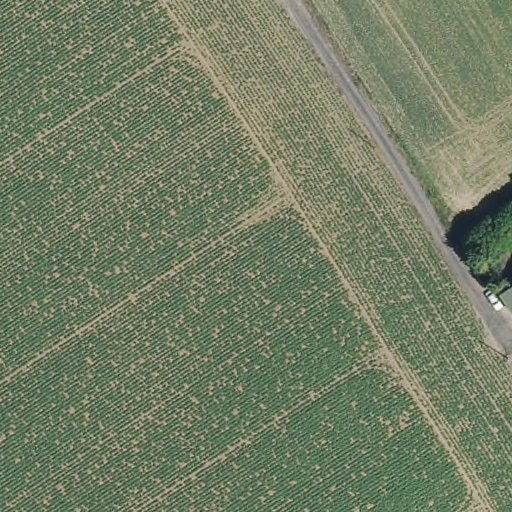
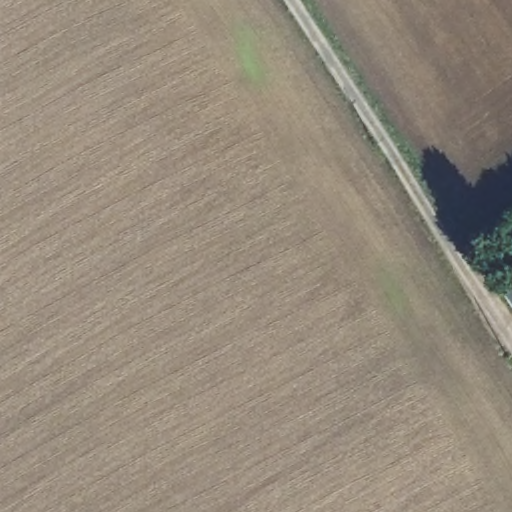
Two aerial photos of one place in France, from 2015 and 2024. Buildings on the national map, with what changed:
unchanged [(505,295),(512,289),(512,307),(505,295)]

